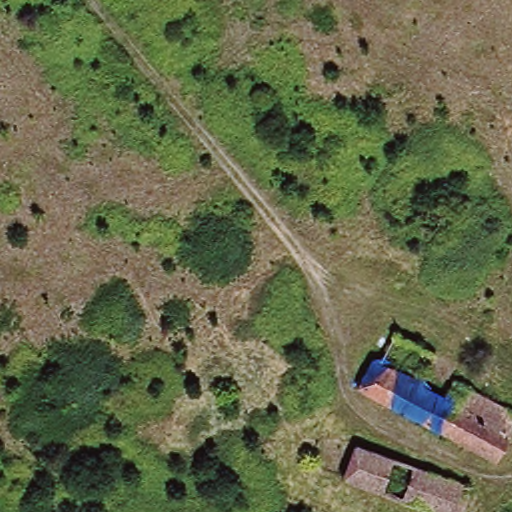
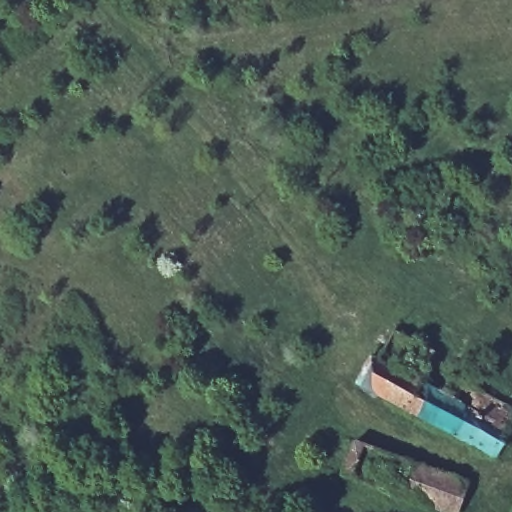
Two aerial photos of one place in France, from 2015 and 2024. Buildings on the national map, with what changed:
unchanged [(500,458),(362,384),(376,357),(383,361),(399,330),(439,352),(424,381),(449,394),(459,377),(512,406),(512,436),(500,458)]
unchanged [(441,512),(342,475),(354,441),(469,483),(459,512),(441,512)]

